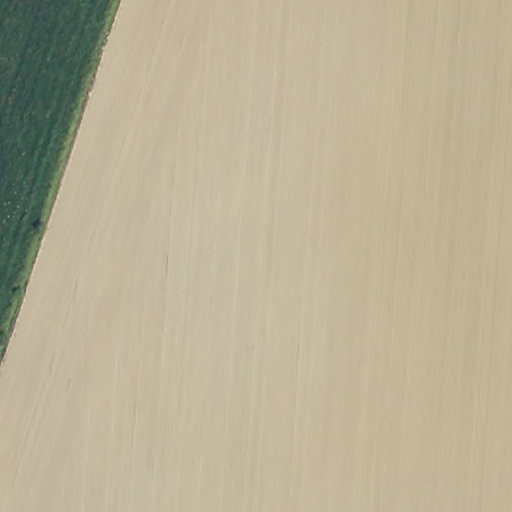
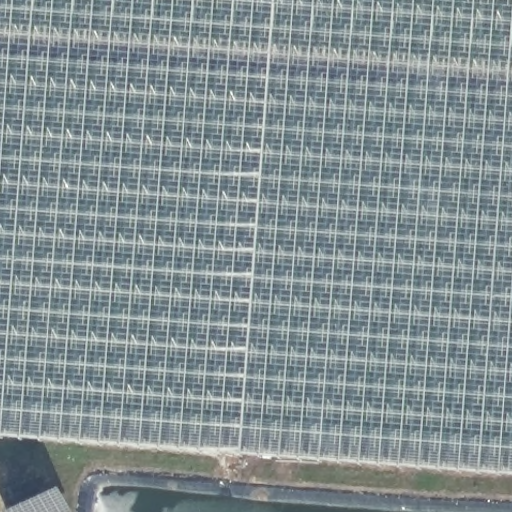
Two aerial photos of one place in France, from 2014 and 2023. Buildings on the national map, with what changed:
new [(0,435),(0,0),(512,0),(512,473),(0,435)]

